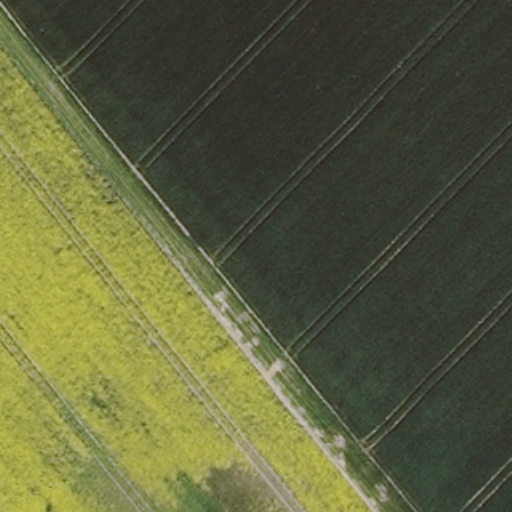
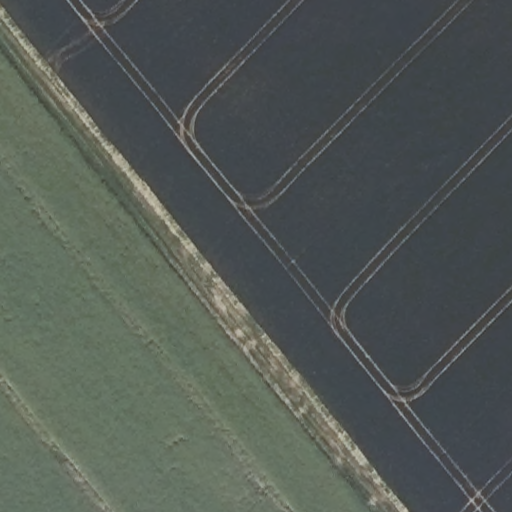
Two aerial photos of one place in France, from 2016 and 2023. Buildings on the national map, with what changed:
[]

